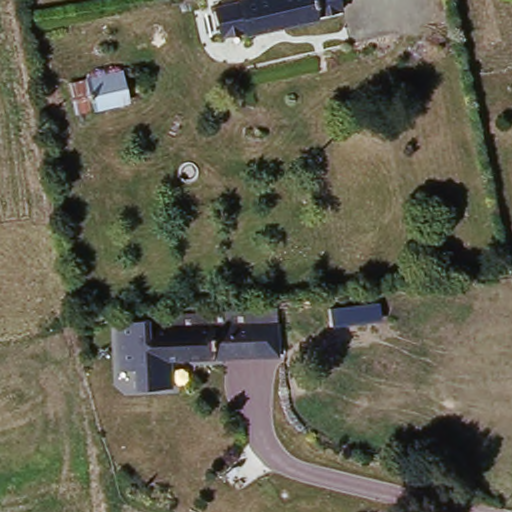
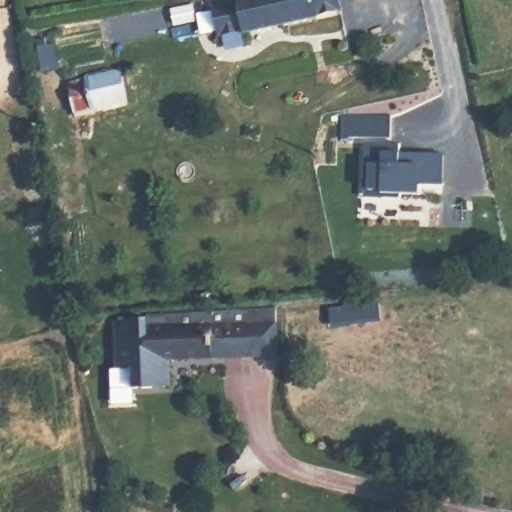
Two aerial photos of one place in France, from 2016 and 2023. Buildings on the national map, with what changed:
unchanged [(323,21),(250,35),(243,0),(319,0),(323,21)]
unchanged [(121,75),(127,103),(74,115),(70,87),(121,75)]
new [(400,146),(400,152),(441,155),(440,186),(420,186),(418,196),(401,195),(400,201),(365,200),(367,145),(400,146)]
unchanged [(216,354),(213,356),(168,386),(131,390),(131,366),(112,366),(112,319),(211,323),(210,313),(250,311),(252,310),(276,307),(278,318),(251,322),(253,352),(216,354)]
unchanged [(356,353),(383,350),(384,361),(358,363),(356,353)]
unchanged [(144,416),(156,417),(156,428),(145,427),(144,416)]

